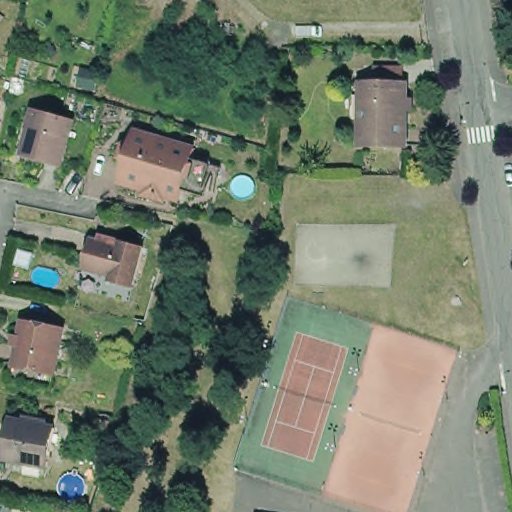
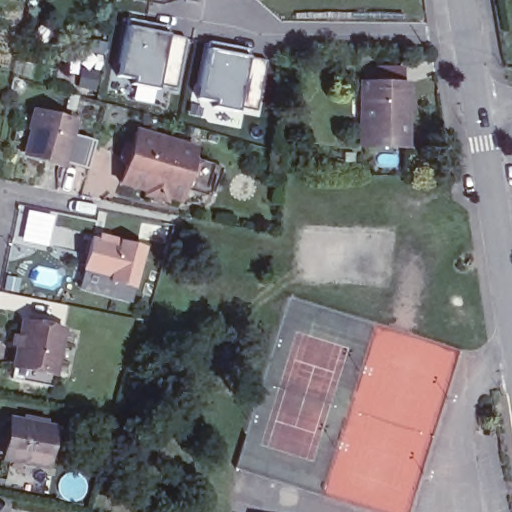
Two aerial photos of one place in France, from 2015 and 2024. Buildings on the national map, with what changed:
new [(171,31),(169,40),(186,42),(177,90),(120,81),(131,23),(171,31)]
new [(252,52),(250,61),(267,63),(258,112),(201,103),(212,44),(252,52)]
unchanged [(410,103),(417,103),(417,115),(410,115),(410,151),(365,150),(365,130),(355,129),(356,87),(365,87),(369,87),(410,88),(410,103)]
unchanged [(14,158),(27,117),(34,119),(37,110),(75,123),(63,162),(45,157),(42,166),(14,158)]
unchanged [(142,199),(144,193),(119,185),(124,166),(117,160),(121,147),(130,145),(133,134),(195,152),(179,204),(164,199),(162,205),(142,199)]
unchanged [(117,247),(120,241),(142,248),(131,288),(108,282),(110,275),(82,268),(90,240),(111,246),(117,247)]
new [(82,268),(110,276),(109,281),(131,288),(127,301),(77,287),(82,268)]
unchanged [(64,334),(55,375),(13,367),(22,326),(64,334)]
unchanged [(55,427),(47,466),(7,458),(15,419),(55,427)]

